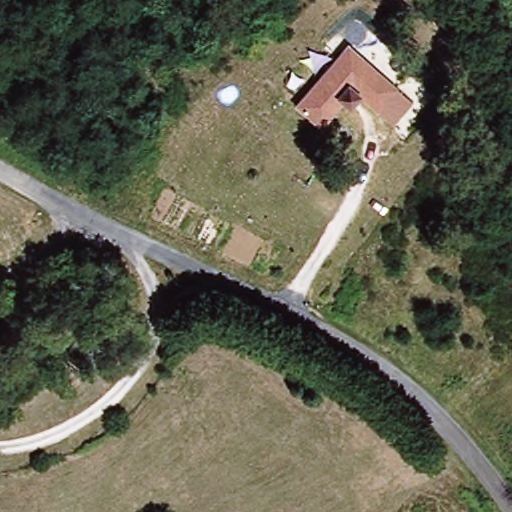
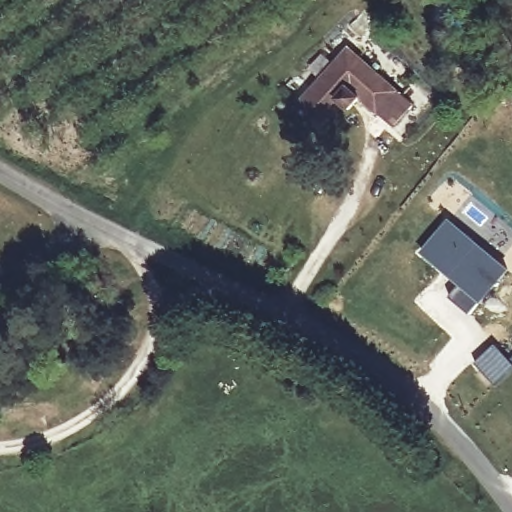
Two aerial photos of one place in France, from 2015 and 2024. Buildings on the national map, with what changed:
unchanged [(348,114),(342,108),(319,133),(293,111),(347,51),(410,108),(391,131),(358,102),(348,114)]
new [(425,251),(451,219),(510,268),(472,313),(458,301),(452,295),(462,282),(425,251)]
new [(497,342),(512,359),(512,366),(493,383),(475,363),(497,342)]

